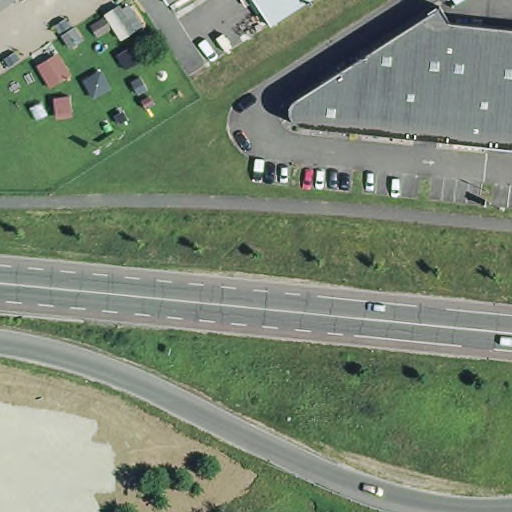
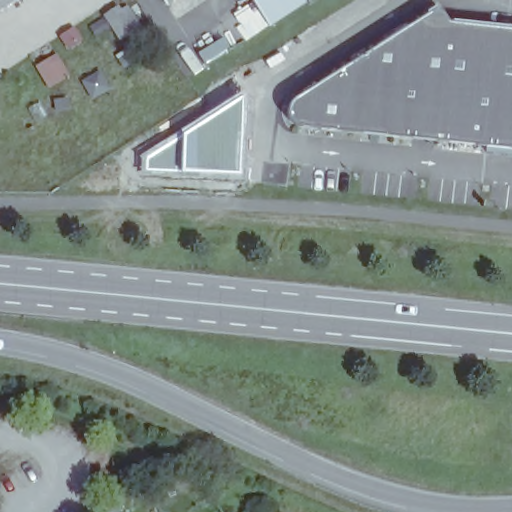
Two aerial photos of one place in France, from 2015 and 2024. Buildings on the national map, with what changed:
unchanged [(12,0),(0,8),(0,0),(12,0)]
unchanged [(163,0),(172,0),(166,4),(163,0)]
unchanged [(251,0),(308,0),(269,26),(251,0)]
new [(251,2),(269,27),(246,42),(235,27),(239,25),(233,15),(251,2)]
unchanged [(120,45),(102,16),(119,6),(122,9),(128,5),(141,29),(120,45)]
unchanged [(298,98),(441,6),(451,23),(512,29),(512,149),(302,126),(295,124),(290,115),(291,105),(298,98)]
new [(240,94),(242,107),(240,176),(143,172),(142,157),(141,155),(240,94)]

